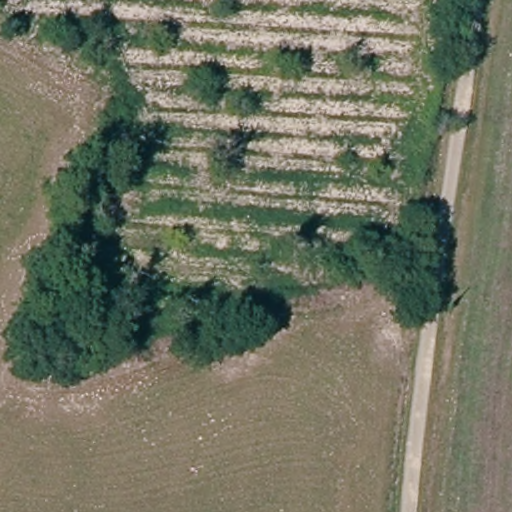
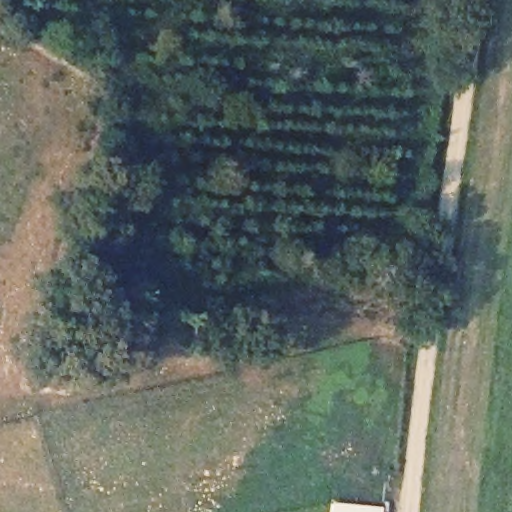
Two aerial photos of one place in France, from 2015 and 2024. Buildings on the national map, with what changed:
new [(331,502),(381,508),(381,512),(330,512),(331,502)]

